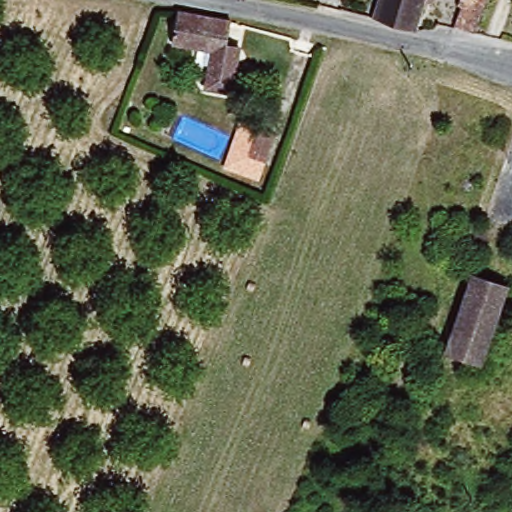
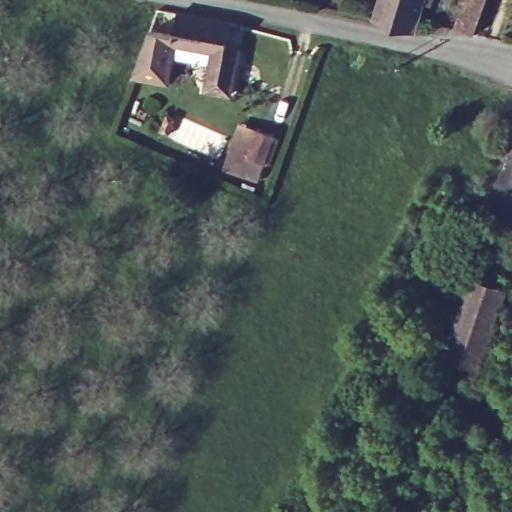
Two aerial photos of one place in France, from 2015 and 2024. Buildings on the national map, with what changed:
unchanged [(418,35),(375,27),(383,0),(438,0),(435,9),(426,6),(418,35)]
unchanged [(456,34),(467,0),(493,0),(480,36),(456,34)]
unchanged [(237,67),(230,98),(205,92),(211,67),(196,64),(171,57),(174,45),(182,13),(231,25),(225,49),(241,52),(237,67)]
new [(168,41),(167,82),(134,76),(146,30),(158,33),(168,41)]
unchanged [(264,120),(285,129),(275,155),(255,147),(264,120)]
unchanged [(481,368),(447,357),(475,279),(507,290),(481,368)]

